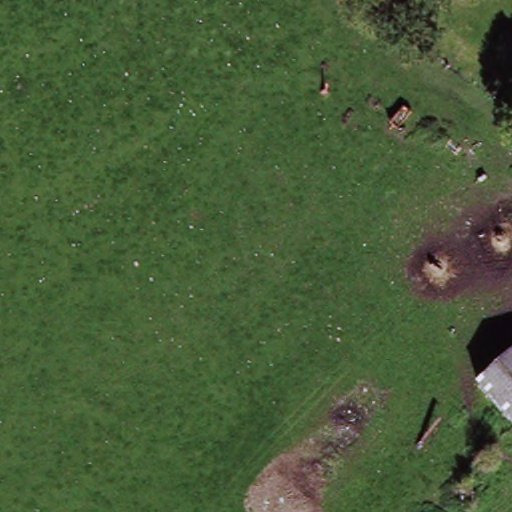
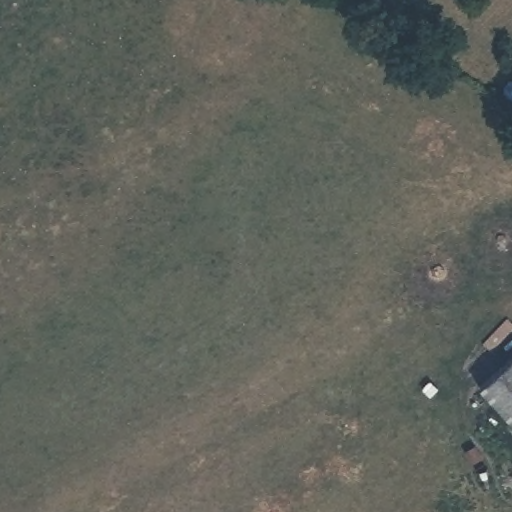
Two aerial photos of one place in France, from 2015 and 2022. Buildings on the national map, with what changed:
unchanged [(512,361),(512,430),(477,395),(512,361)]

